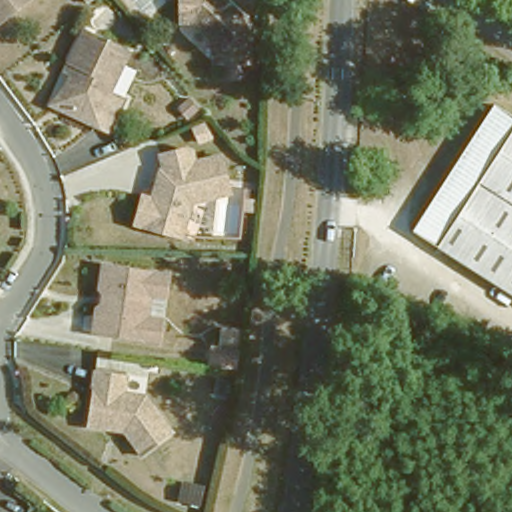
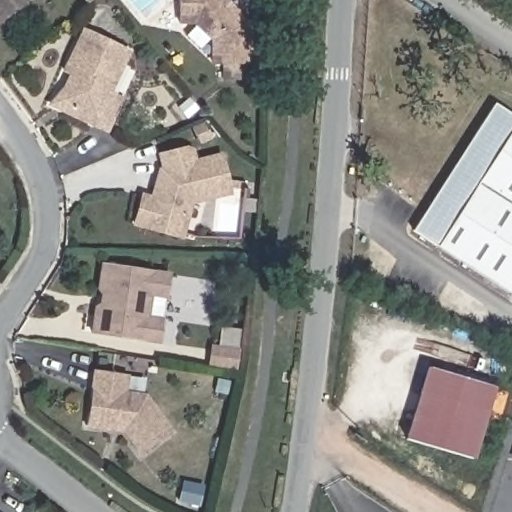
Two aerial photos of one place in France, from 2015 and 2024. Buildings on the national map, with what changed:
unchanged [(33,0),(35,3),(0,30),(0,0),(33,0)]
unchanged [(182,0),(219,0),(252,31),(252,69),(215,69),(215,46),(196,27),(182,27),(182,12),(182,0)]
unchanged [(67,87),(68,86),(72,76),(66,71),(80,42),(126,63),(106,103),(120,110),(104,142),(91,136),(92,131),(72,121),(62,99),(67,87)]
unchanged [(512,110),(512,284),(424,232),(415,230),(435,196),(492,99),(512,110)]
unchanged [(204,211),(192,245),(177,240),(132,225),(141,199),(151,202),(161,175),(164,174),(161,159),(184,153),(187,156),(191,167),(217,161),(226,197),(228,205),(204,211)]
unchanged [(102,267),(169,280),(165,302),(142,301),(142,311),(150,325),(160,325),(153,348),(89,336),(94,310),(102,307),(103,297),(96,296),(102,267)]
new [(221,327),(240,330),(236,371),(207,368),(209,346),(219,347),(221,327)]
new [(471,458),(407,440),(428,368),(493,387),(471,458)]
unchanged [(118,435),(111,433),(105,438),(85,434),(92,376),(127,382),(124,401),(142,403),(170,442),(140,462),(124,442),(118,435)]

